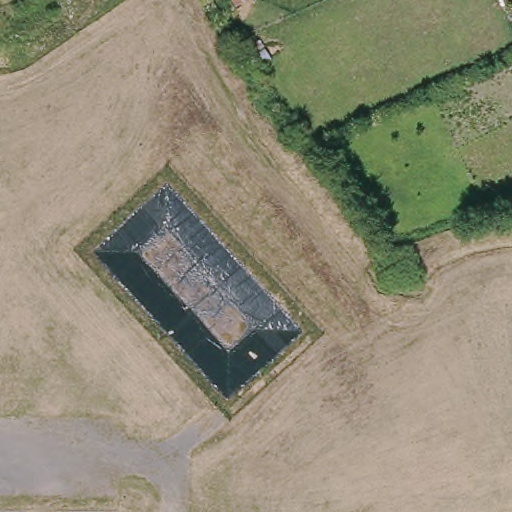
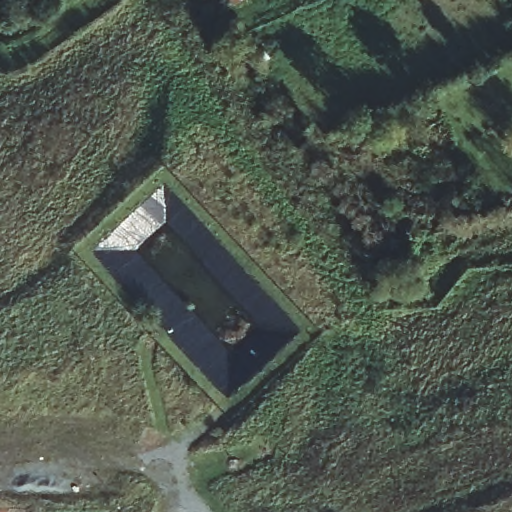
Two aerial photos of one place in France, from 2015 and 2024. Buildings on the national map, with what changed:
unchanged [(228,0),(243,0),(231,6),(228,0)]

